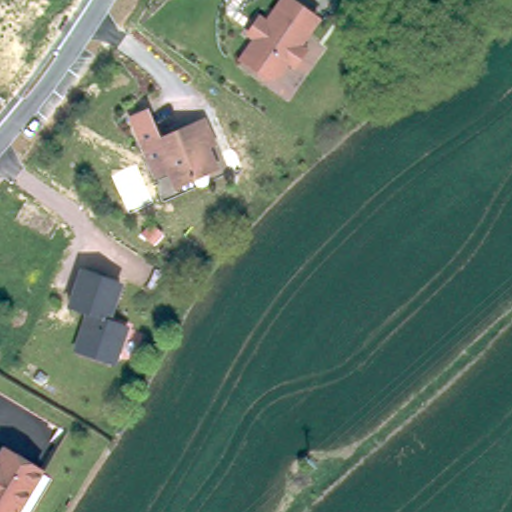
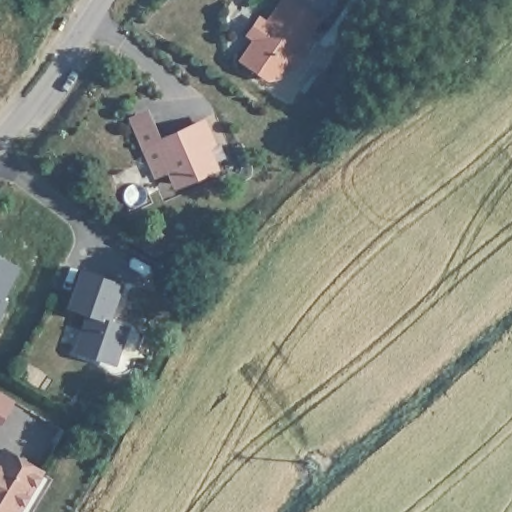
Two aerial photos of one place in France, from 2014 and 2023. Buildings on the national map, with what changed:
unchanged [(245,53),(255,40),(247,35),(256,21),(265,27),(282,0),(314,23),(295,49),(302,53),(292,68),(285,63),(273,79),(268,80),(260,74),(240,60),(245,53)]
unchanged [(194,181),(175,189),(168,174),(154,181),(149,168),(140,148),(132,128),(147,122),(158,149),(202,129),(210,146),(202,150),(210,168),(212,173),(194,181)]
new [(0,258),(20,267),(3,299),(8,300),(0,316),(0,258)]
unchanged [(123,286),(111,323),(128,329),(118,361),(112,364),(80,353),(92,317),(74,311),(86,275),(123,286)]
new [(0,423),(0,394),(15,402),(0,423)]
unchanged [(40,468),(15,512),(0,512),(0,448),(1,446),(40,468)]

